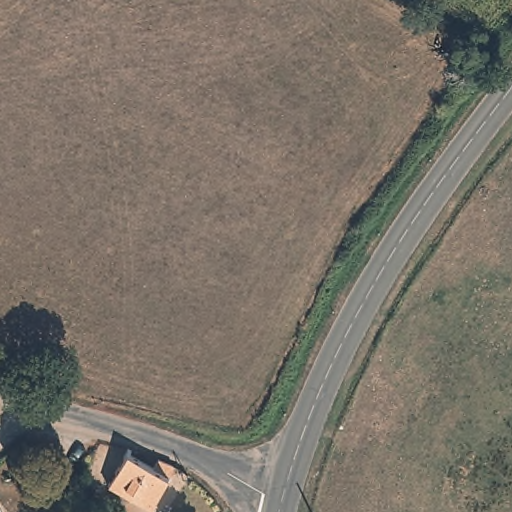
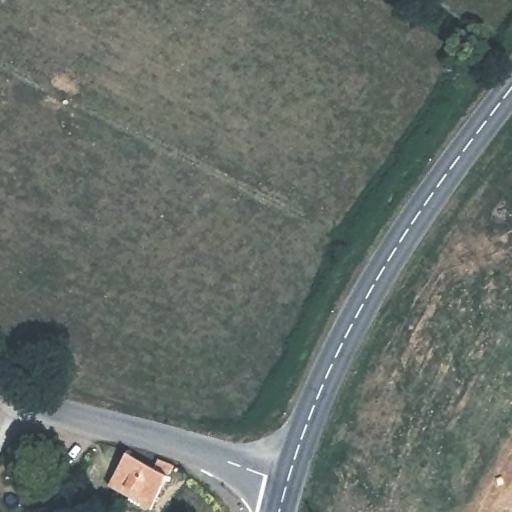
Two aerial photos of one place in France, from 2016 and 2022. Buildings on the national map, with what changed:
unchanged [(153,468),(158,460),(174,467),(167,476),(171,478),(169,482),(165,480),(151,510),(125,495),(107,486),(124,457),(123,457),(127,449),(132,451),(130,456),(153,468)]

